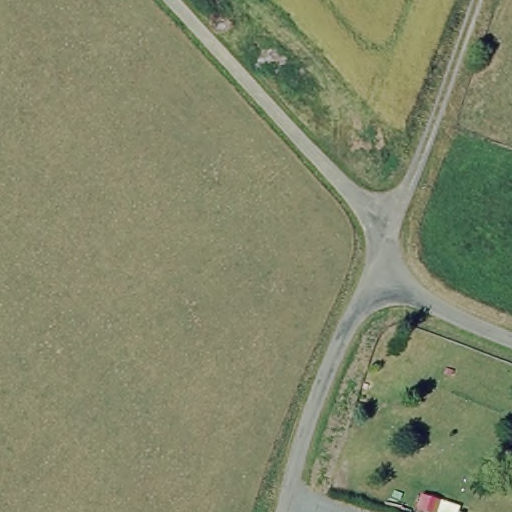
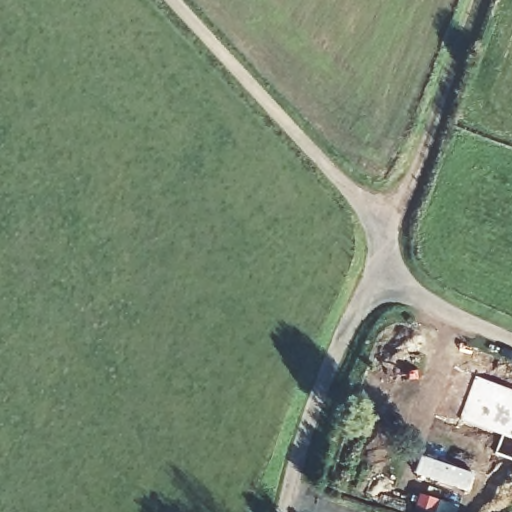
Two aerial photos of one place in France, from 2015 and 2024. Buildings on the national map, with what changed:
new [(512,389),(512,460),(495,454),(502,434),(460,418),(476,375),(512,389)]

